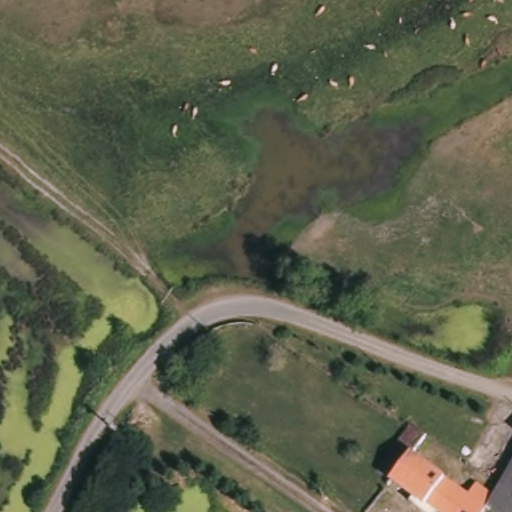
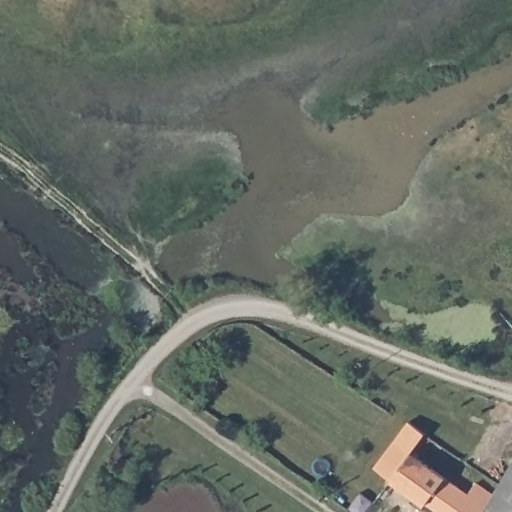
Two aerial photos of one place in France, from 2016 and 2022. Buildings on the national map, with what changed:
unchanged [(411,423),(425,434),(414,450),(443,475),(425,502),(393,478),(378,467),(411,423)]
unchanged [(443,475),(468,495),(476,487),(496,501),(489,511),(487,512),(438,512),(425,502),(443,475)]
unchanged [(496,501),(504,490),(512,477),(512,512),(491,512),(489,511),(496,501)]

